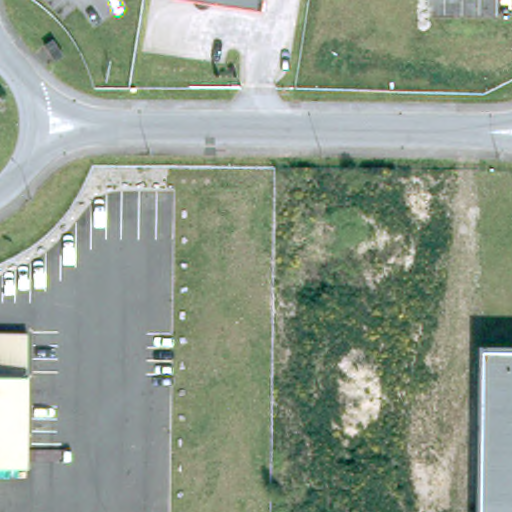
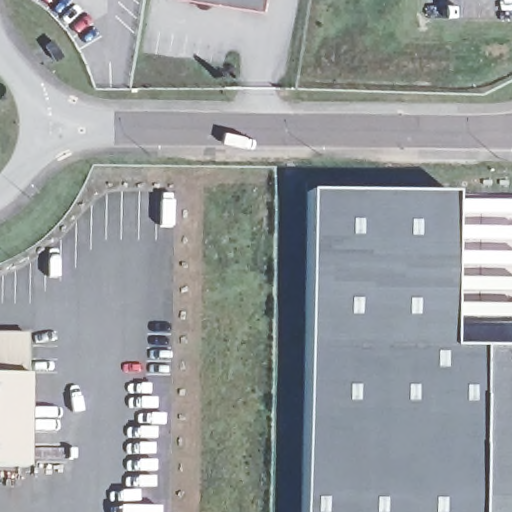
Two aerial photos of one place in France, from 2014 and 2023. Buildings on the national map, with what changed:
unchanged [(255,11),(170,0),(257,0),(255,11)]
new [(453,192),(451,349),(480,351),(478,512),(302,512),(306,191),(453,192)]
unchanged [(23,414),(23,466),(0,466),(0,334),(24,334),(23,414)]
unchanged [(512,351),(512,512),(478,512),(480,351),(512,351)]

